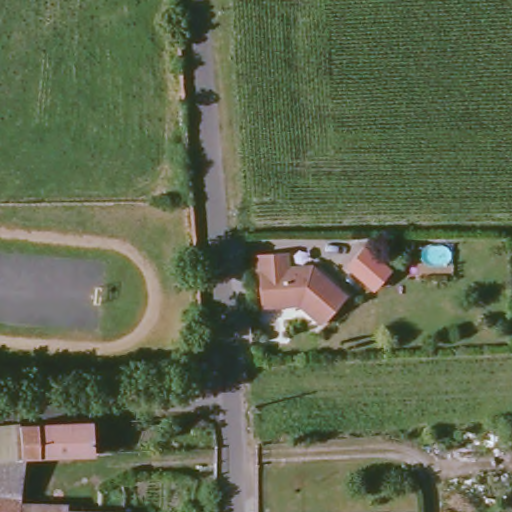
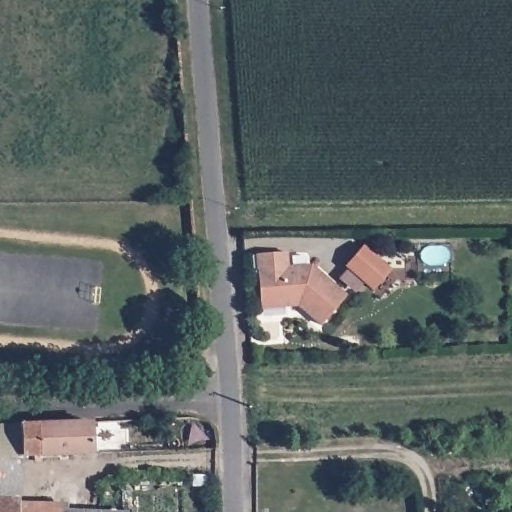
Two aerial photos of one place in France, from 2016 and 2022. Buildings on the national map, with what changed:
unchanged [(285,246),(287,260),(310,260),(345,290),(320,318),(291,295),(285,301),(260,301),(255,246),(285,246)]
unchanged [(15,447),(7,502),(118,506),(118,512),(0,512),(0,416),(13,414),(86,412),(87,443),(15,447)]

